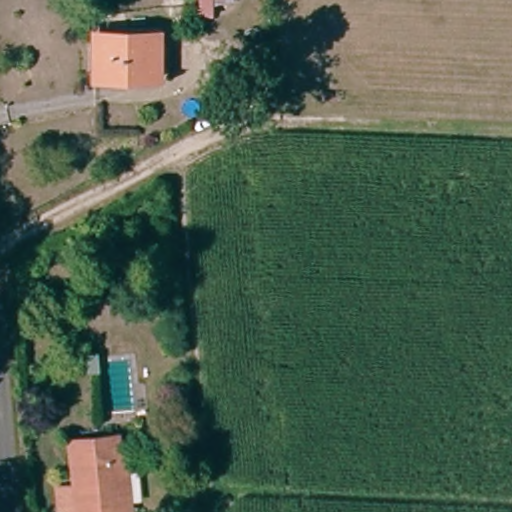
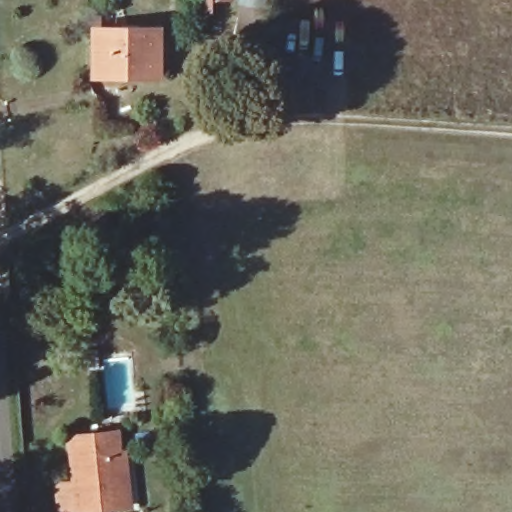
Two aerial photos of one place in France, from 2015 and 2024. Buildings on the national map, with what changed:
unchanged [(216,1),(215,15),(197,15),(197,0),(238,0),(237,2),(216,1)]
unchanged [(155,73),(92,72),(92,26),(155,29),(155,73)]
unchanged [(126,510),(84,512),(75,512),(67,437),(119,433),(126,510)]

